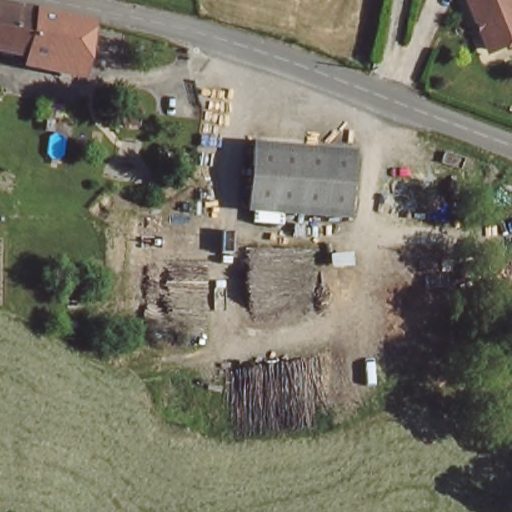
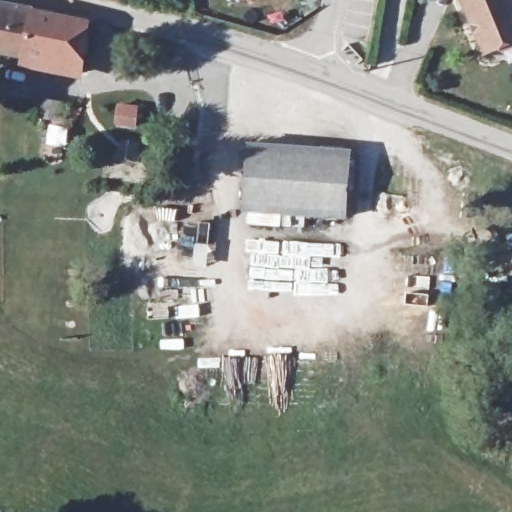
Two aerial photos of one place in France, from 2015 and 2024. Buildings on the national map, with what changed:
unchanged [(465,0),(512,0),(512,50),(491,57),(480,27),(477,29),(465,0)]
unchanged [(29,54),(0,50),(0,4),(32,10),(29,54)]
unchanged [(48,14),(88,22),(84,61),(29,54),(32,10),(48,14)]
unchanged [(353,147),(349,212),(301,209),(245,205),(250,140),(305,145),(353,147)]

